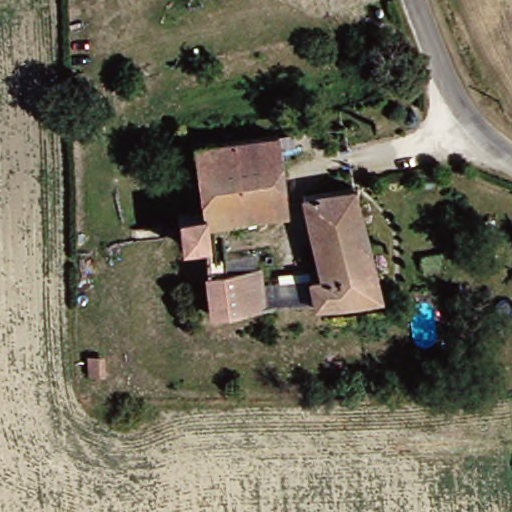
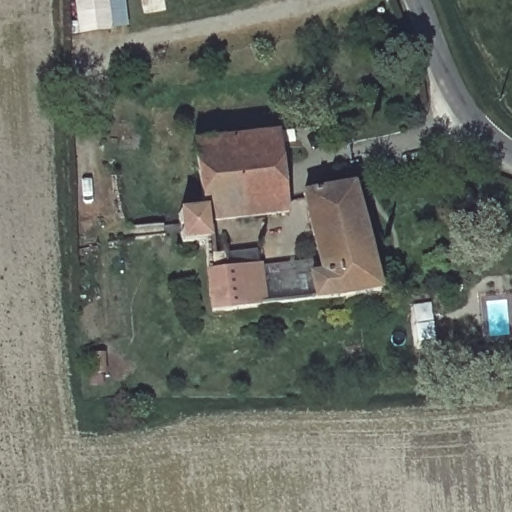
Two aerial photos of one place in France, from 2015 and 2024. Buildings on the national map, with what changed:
new [(79,34),(74,0),(124,0),(127,28),(79,34)]
unchanged [(260,306),(240,308),(204,312),(197,242),(177,244),(174,212),(197,210),(190,143),(272,132),(283,214),(203,223),(205,241),(218,240),(220,269),(235,267),(255,265),(260,306)]
unchanged [(374,291),(345,297),(309,301),(303,276),(315,275),(297,195),(347,186),(374,291)]

